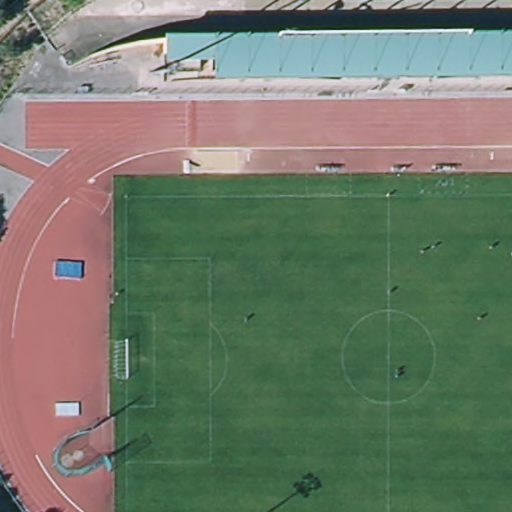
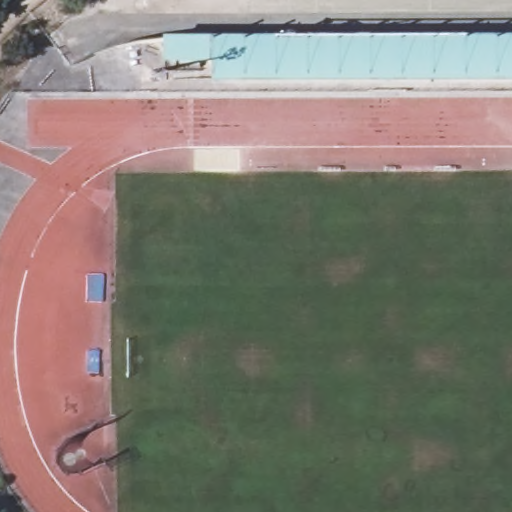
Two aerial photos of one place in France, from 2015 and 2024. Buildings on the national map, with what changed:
unchanged [(512,80),(441,80),(441,69),(434,69),(434,80),(348,79),(348,69),(341,69),(341,79),(174,77),(174,67),(167,67),(167,37),(512,40),(512,80)]

